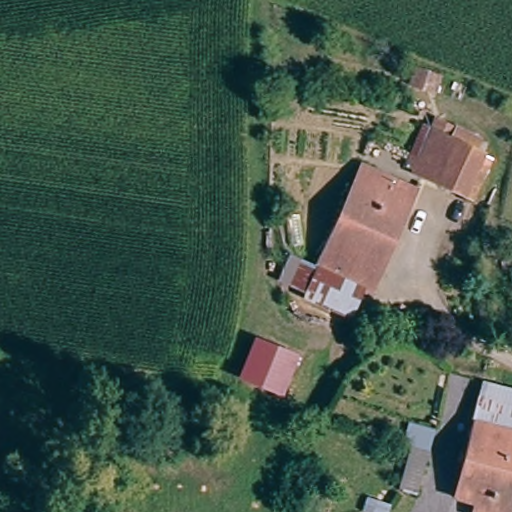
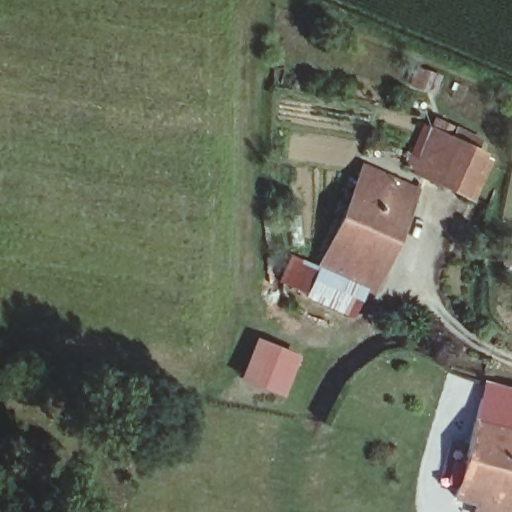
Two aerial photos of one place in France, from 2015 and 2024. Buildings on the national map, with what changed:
unchanged [(482,202),(416,173),(438,123),(459,131),(455,145),(487,159),(483,173),(493,178),(482,202)]
unchanged [(355,167),(409,192),(363,292),(358,290),(309,267),(355,167)]
unchanged [(358,290),(347,315),(298,294),(309,267),(358,290)]
unchanged [(281,394),(243,380),(258,340),(298,355),(281,394)]
unchanged [(450,502),(465,432),(472,429),(477,399),(448,392),(451,372),(512,386),(512,512),(467,512),(468,507),(450,502)]
unchanged [(419,494),(409,492),(398,489),(415,424),(425,427),(437,430),(419,494)]

